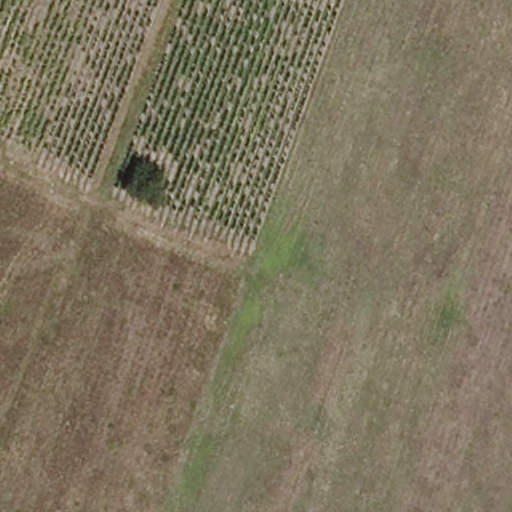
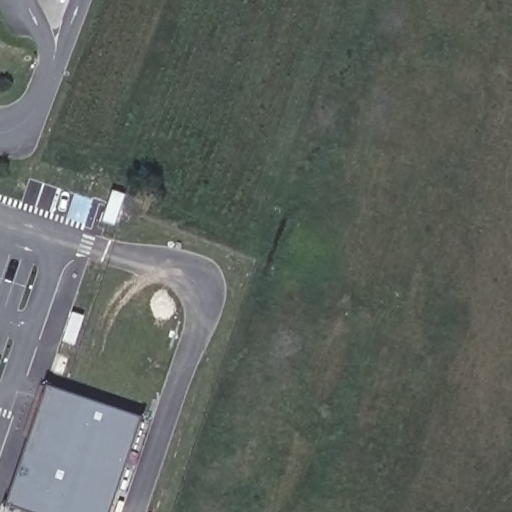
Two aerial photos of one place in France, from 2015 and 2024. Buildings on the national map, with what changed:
new [(25,512),(4,505),(45,384),(140,416),(109,512),(25,512)]

